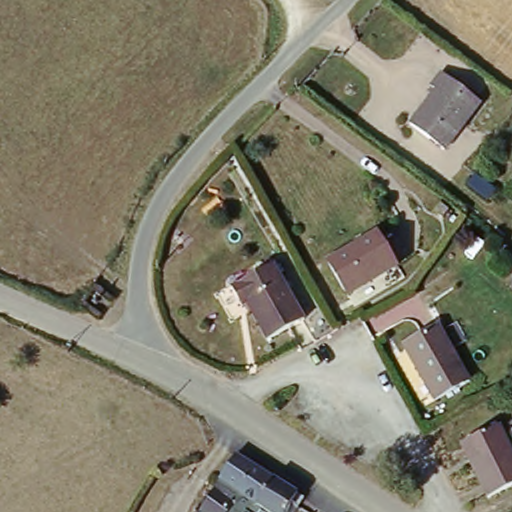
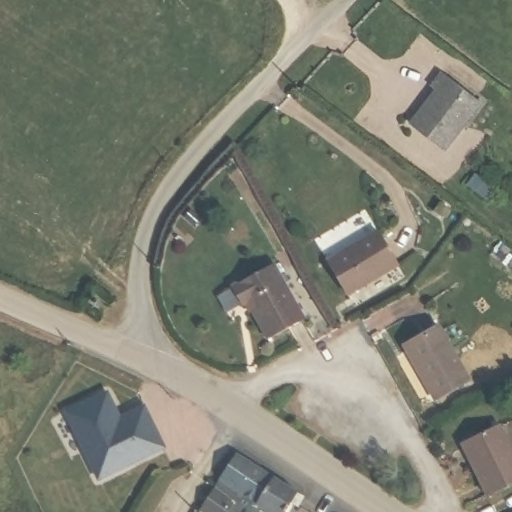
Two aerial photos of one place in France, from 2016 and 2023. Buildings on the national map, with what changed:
unchanged [(414,134),(438,101),(431,95),(442,80),(482,111),(447,158),(414,134)]
unchanged [(329,265),(380,237),(399,272),(349,300),(329,265)]
unchanged [(268,346),(248,308),(242,311),(232,293),(274,271),(305,326),(268,346)]
unchanged [(404,350),(437,330),(467,383),(433,402),(404,350)]
new [(119,418),(144,408),(163,449),(98,478),(66,412),(106,393),(119,418)]
unchanged [(499,434),(512,457),(512,494),(490,506),(462,456),(499,434)]
unchanged [(303,512),(267,512),(221,482),(228,473),(237,463),(306,508),(303,512)]
unchanged [(204,504),(205,504),(215,493),(221,482),(267,512),(200,512),(204,504)]

